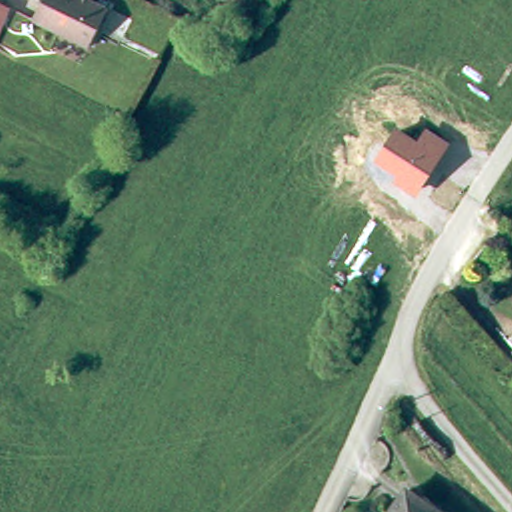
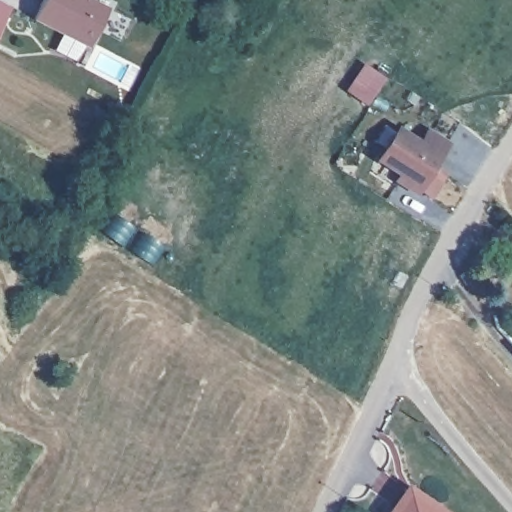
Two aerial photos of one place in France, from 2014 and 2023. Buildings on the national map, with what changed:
unchanged [(1,17),(0,19),(0,0),(10,0),(1,17)]
unchanged [(108,10),(88,46),(34,17),(43,0),(90,0),(108,10)]
new [(369,67),(385,79),(371,100),(354,87),(369,67)]
unchanged [(450,143),(417,198),(393,184),(399,174),(377,162),(396,129),(416,143),(426,129),(450,143)]
unchanged [(502,227),(512,241),(512,268),(503,275),(473,243),(502,227)]
unchanged [(442,512),(393,512),(408,489),(442,512)]

